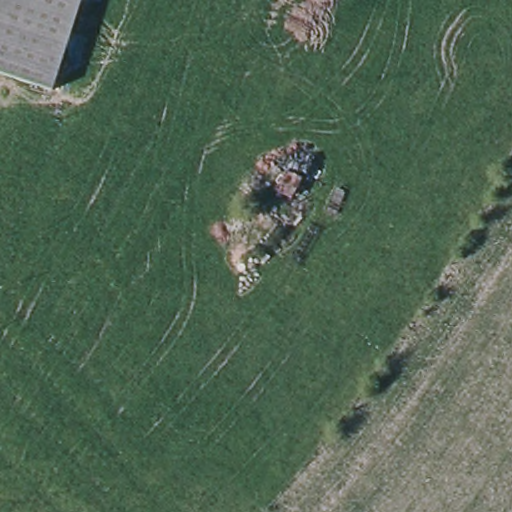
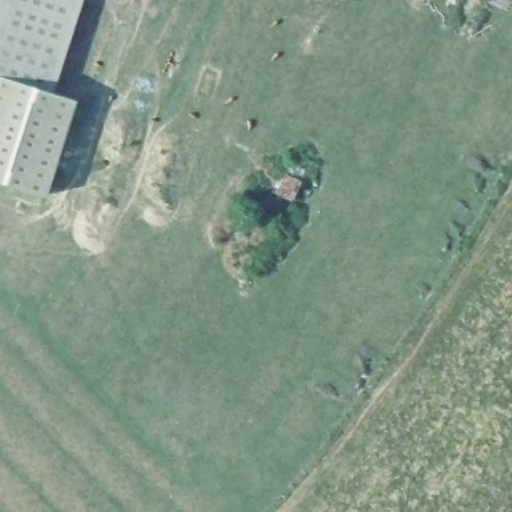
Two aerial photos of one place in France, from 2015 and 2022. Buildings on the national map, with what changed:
unchanged [(51,92),(7,77),(0,75),(0,0),(81,0),(51,92)]
new [(7,77),(51,92),(75,99),(45,196),(0,181),(0,75),(7,77)]
unchanged [(309,180),(295,203),(273,193),(287,170),(309,180)]

